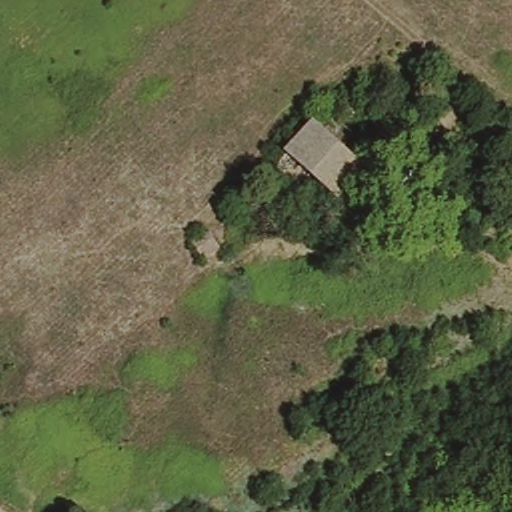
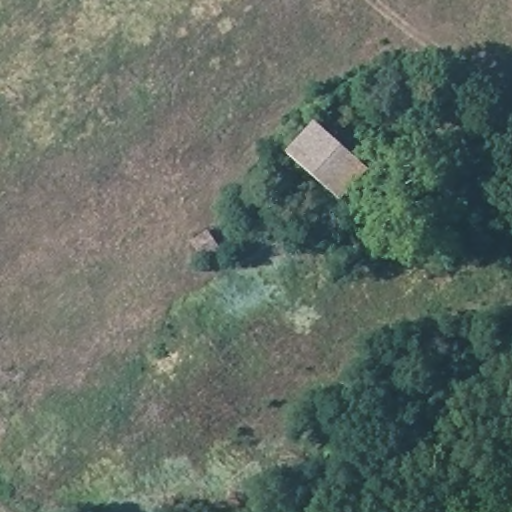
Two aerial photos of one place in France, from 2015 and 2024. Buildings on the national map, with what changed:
unchanged [(325,229),(265,180),(324,110),(341,124),(330,135),(375,171),(325,229)]
unchanged [(187,246),(197,232),(210,243),(201,256),(187,246)]

